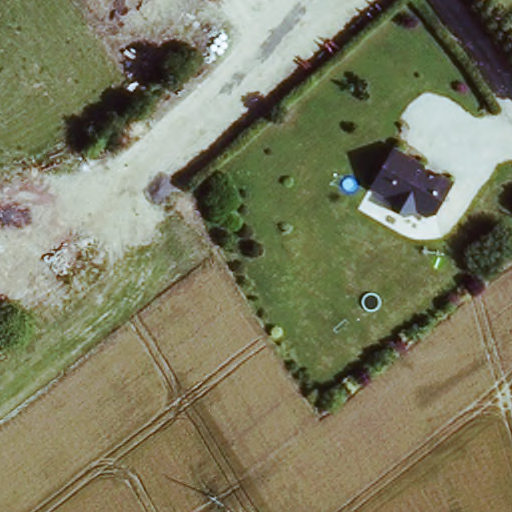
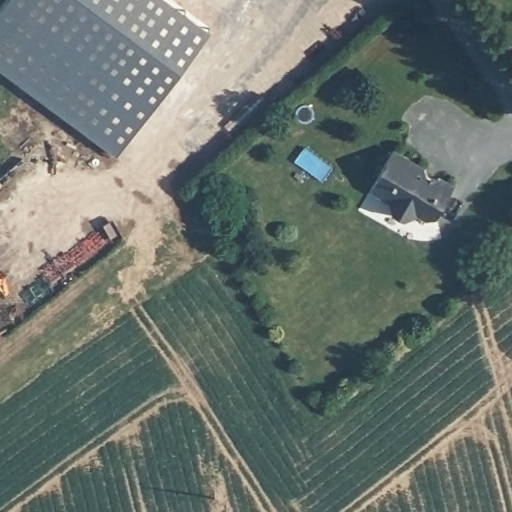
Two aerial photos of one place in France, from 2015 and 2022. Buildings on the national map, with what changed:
new [(116,154),(0,67),(0,8),(6,0),(173,0),(210,28),(116,154)]
unchanged [(452,181),(434,212),(427,215),(416,208),(405,216),(393,207),(390,197),(370,186),(392,146),(420,164),(430,173),(439,173),(452,181)]
demolished [(76,267),(15,323),(0,307),(0,193),(76,267)]

